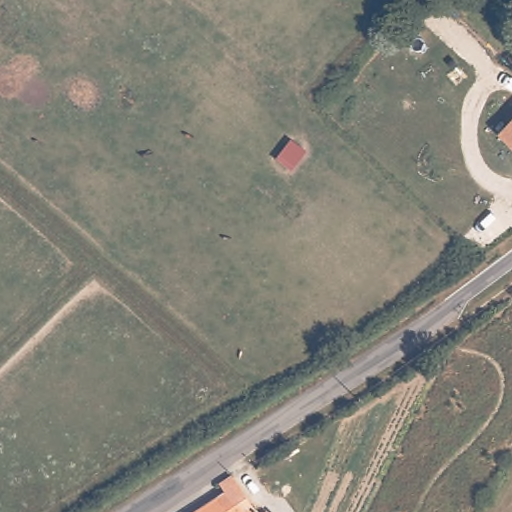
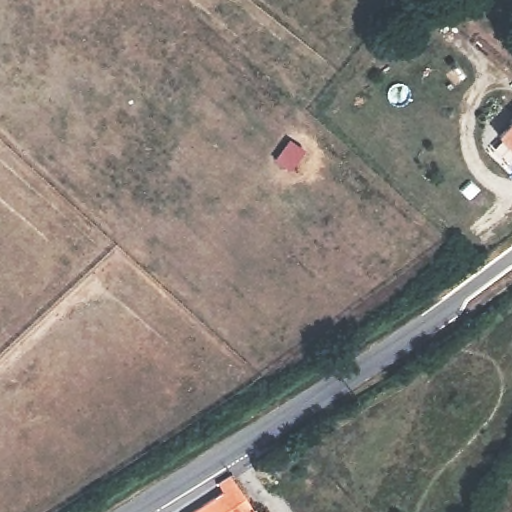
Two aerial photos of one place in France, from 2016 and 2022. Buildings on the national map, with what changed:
unchanged [(512,116),(512,126),(507,121),(512,116)]
unchanged [(217,478),(230,470),(261,512),(246,512),(184,512),(221,487),(217,478)]

